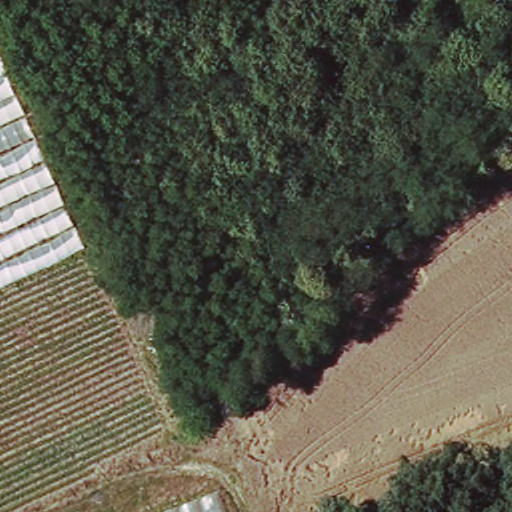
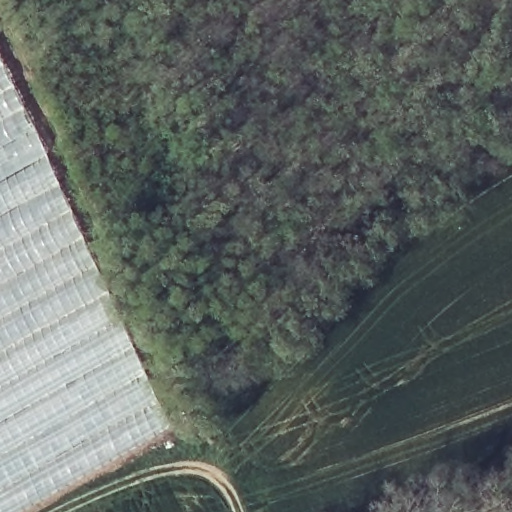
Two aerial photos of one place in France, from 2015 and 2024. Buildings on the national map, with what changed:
demolished [(0,336),(113,288),(173,421),(0,504),(0,336)]

